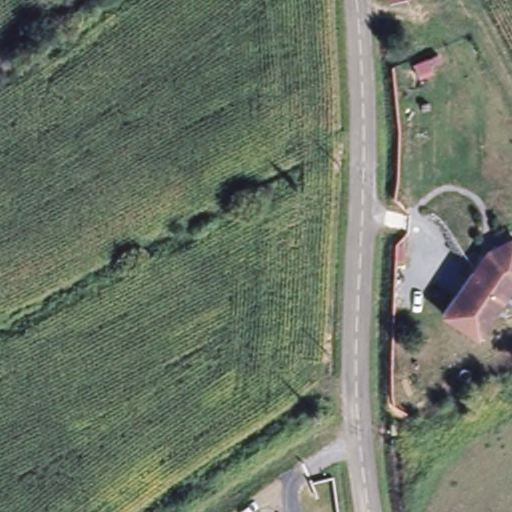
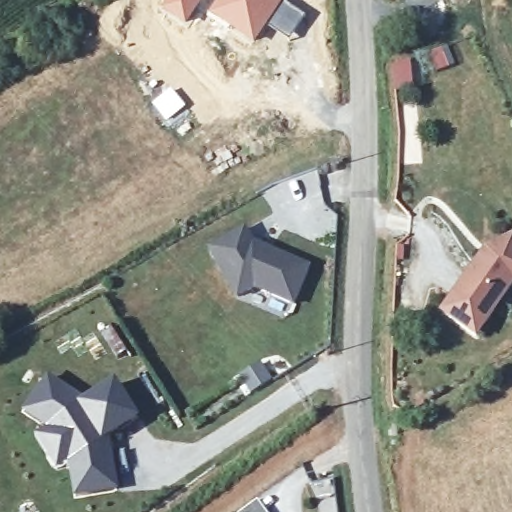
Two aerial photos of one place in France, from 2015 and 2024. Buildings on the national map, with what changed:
new [(161,9),(167,0),(206,0),(186,26),(161,9)]
new [(268,26),(254,45),(209,12),(216,2),(212,0),(284,0),(286,1),(307,17),(290,40),(268,26)]
unchanged [(383,0),(397,0),(384,4),(383,0)]
new [(411,57),(414,88),(392,90),(389,59),(411,57)]
new [(171,89),(187,107),(167,123),(152,105),(171,89)]
new [(256,291),(238,297),(210,248),(246,227),(254,242),(312,266),(295,307),(256,291)]
unchanged [(469,342),(437,316),(485,255),(511,244),(512,247),(512,287),(469,342)]
new [(262,365),(272,380),(252,393),(242,378),(262,365)]
new [(76,497),(70,462),(56,470),(36,436),(47,428),(23,412),(49,375),(89,399),(120,381),(144,417),(113,439),(120,489),(76,497)]

